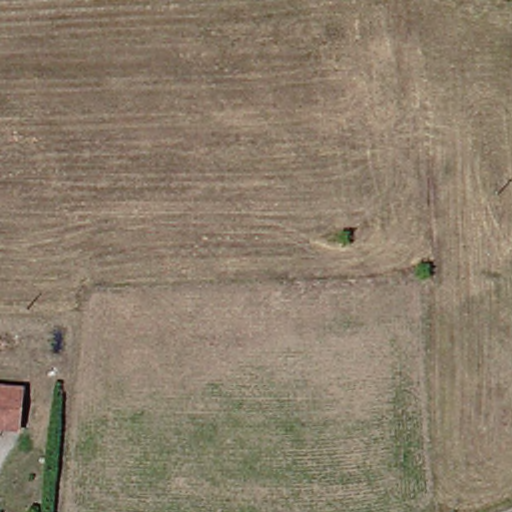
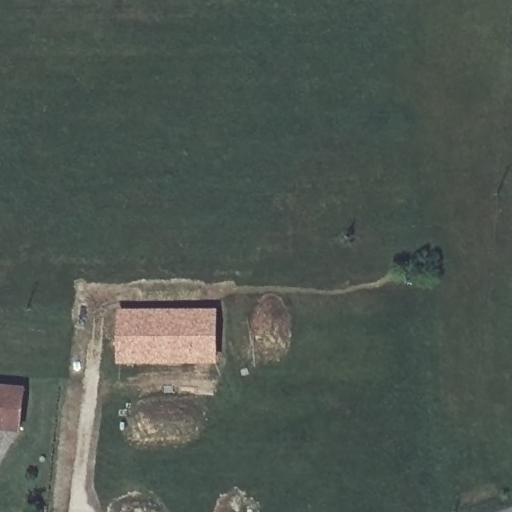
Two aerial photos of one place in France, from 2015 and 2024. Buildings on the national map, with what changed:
new [(117,308),(217,309),(217,363),(118,363),(117,308)]
unchanged [(24,389),(19,430),(0,429),(0,387),(24,389)]

